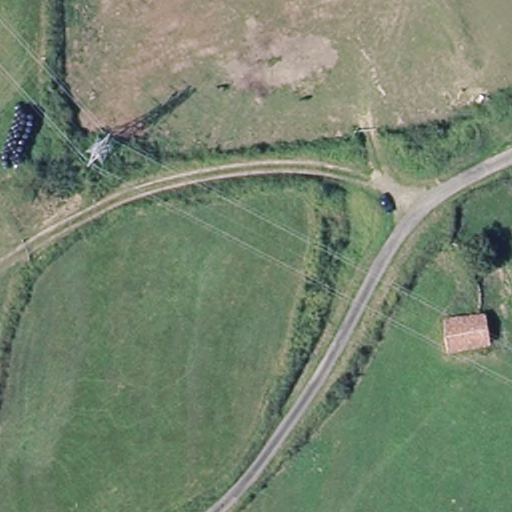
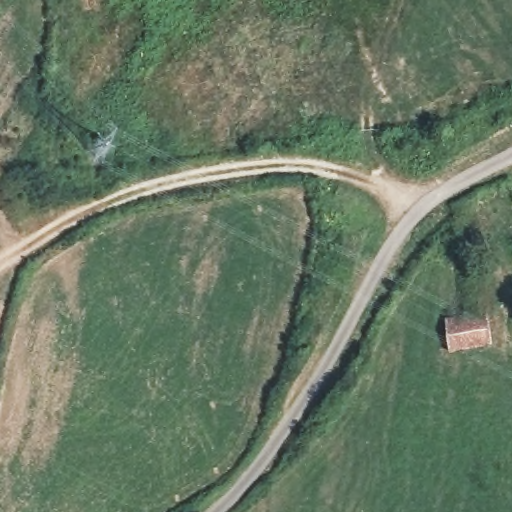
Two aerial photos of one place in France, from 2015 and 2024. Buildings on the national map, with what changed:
unchanged [(448,352),(445,326),(487,318),(492,345),(448,352)]

